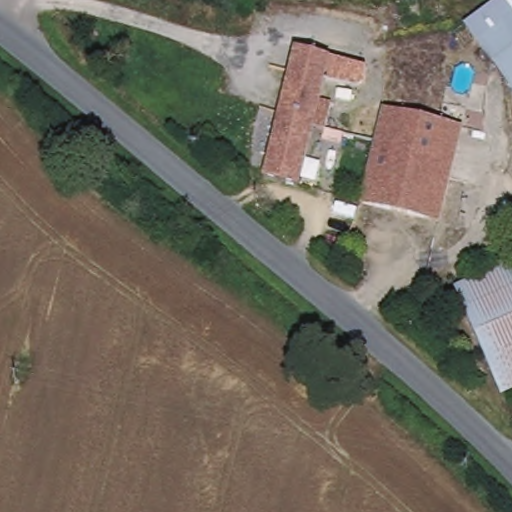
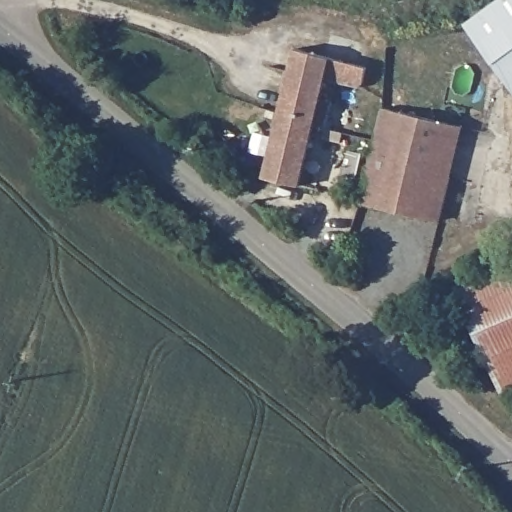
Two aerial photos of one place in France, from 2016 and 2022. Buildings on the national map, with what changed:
unchanged [(466,23),(498,0),(512,0),(512,85),(466,23)]
unchanged [(329,79),(326,100),(334,102),(327,125),(318,124),(302,185),(266,177),(297,48),(366,65),(362,86),(329,79)]
unchanged [(442,219),(362,201),(384,107),(464,124),(442,219)]
unchanged [(512,259),(512,371),(497,378),(495,376),(453,287),(512,259)]
unchanged [(497,378),(512,371),(512,390),(499,395),(493,381),(497,378)]

